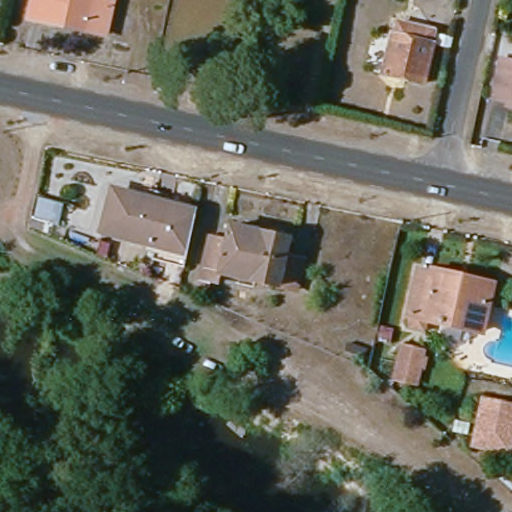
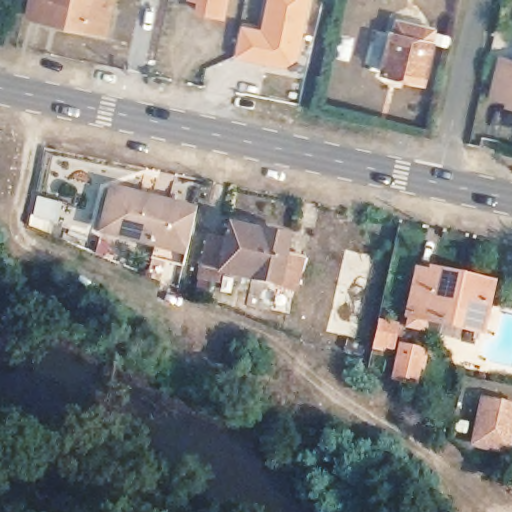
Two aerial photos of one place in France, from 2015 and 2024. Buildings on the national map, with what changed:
unchanged [(100,40),(24,24),(29,0),(102,0),(108,1),(100,40)]
new [(203,0),(225,0),(224,5),(203,0)]
new [(259,28),(265,0),(311,0),(299,53),(296,60),(283,67),(233,57),(240,24),(259,28)]
unchanged [(426,34),(414,88),(374,78),(386,24),(426,34)]
unchanged [(509,110),(510,106),(493,101),(502,64),(512,66),(512,111),(509,110)]
unchanged [(190,215),(177,270),(149,263),(152,250),(96,235),(107,193),(190,215)]
unchanged [(218,286),(201,282),(211,241),(228,245),(231,229),(290,242),(286,258),(304,262),(297,295),(237,281),(220,277),(218,286)]
unchanged [(472,335),(406,320),(417,276),(437,280),(451,284),(483,292),(472,335)]
unchanged [(385,347),(382,364),(374,362),(377,346),(385,347)]
unchanged [(422,351),(415,380),(397,376),(403,346),(422,351)]
unchanged [(476,438),(483,405),(485,400),(493,401),(512,405),(512,441),(509,452),(489,448),(475,445),(476,438)]
unchanged [(512,474),(512,488),(511,489),(495,473),(503,465),(512,474)]

